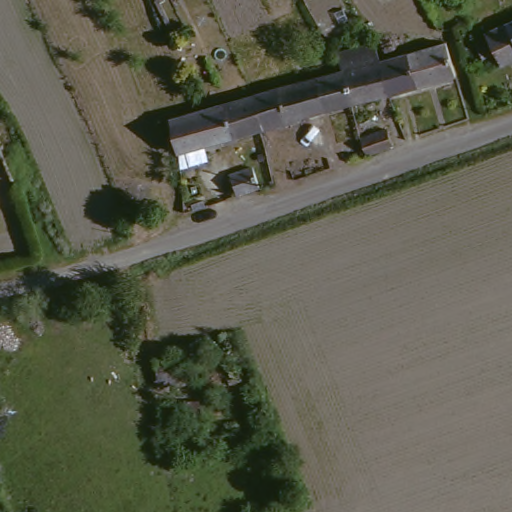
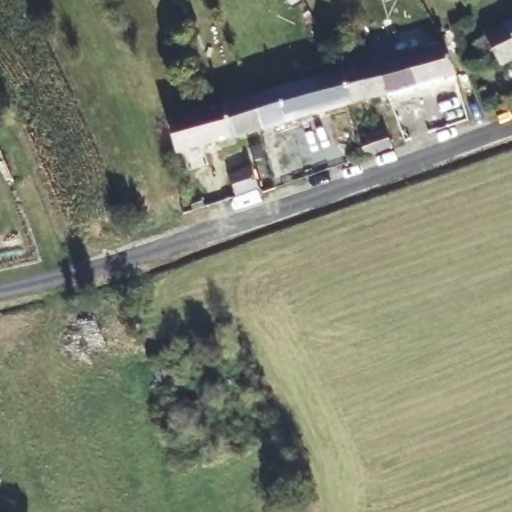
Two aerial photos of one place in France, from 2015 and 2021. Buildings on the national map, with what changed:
unchanged [(494,30),(512,21),(512,64),(510,65),(502,69),(500,66),(484,35),(494,30)]
unchanged [(442,38),(448,36),(459,70),(390,91),(379,58),(442,38)]
unchanged [(343,47),(373,37),(379,58),(390,91),(359,101),(349,66),(343,47)]
unchanged [(359,101),(267,129),(256,95),(349,66),(359,101)]
unchanged [(169,121),(195,113),(223,105),(256,95),(267,129),(205,148),(179,156),(169,121)]
unchanged [(368,163),(364,151),(387,144),(389,155),(368,163)]
unchanged [(239,193),(233,174),(235,173),(259,166),(265,184),(239,193)]
unchanged [(177,375),(180,389),(156,394),(153,380),(177,375)]

